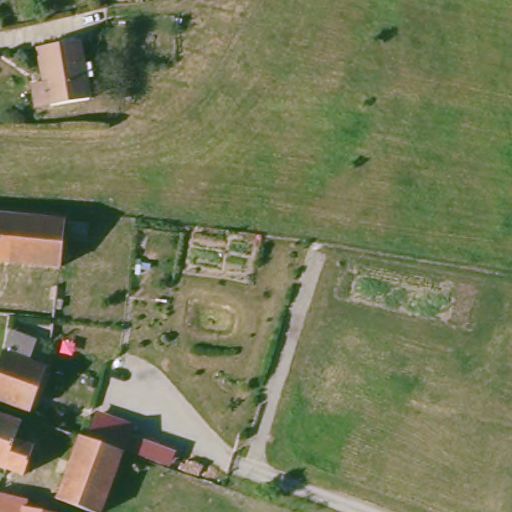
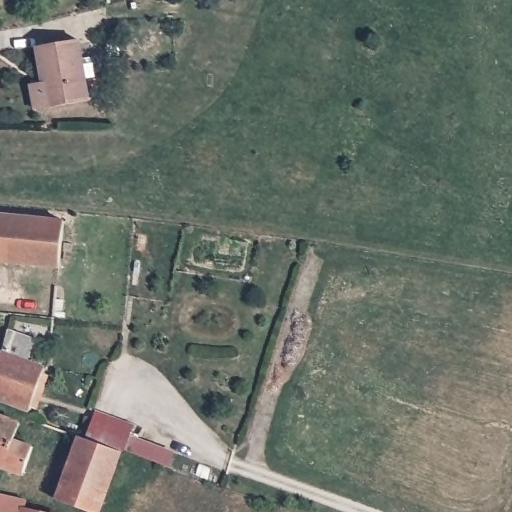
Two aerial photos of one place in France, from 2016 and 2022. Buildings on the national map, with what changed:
unchanged [(75,40),(85,99),(30,105),(27,82),(37,81),(31,46),(75,40)]
unchanged [(51,267),(0,262),(0,215),(57,221),(51,267)]
unchanged [(25,408),(0,400),(0,353),(38,364),(25,408)]
unchanged [(96,411),(135,425),(131,436),(174,452),(170,465),(125,451),(86,438),(96,411)]
unchanged [(16,428),(11,443),(27,451),(18,477),(0,471),(0,422),(16,428)]
unchanged [(98,512),(87,512),(54,500),(78,438),(121,454),(98,512)]
unchanged [(21,505),(20,510),(27,512),(0,512),(0,499),(21,505)]

